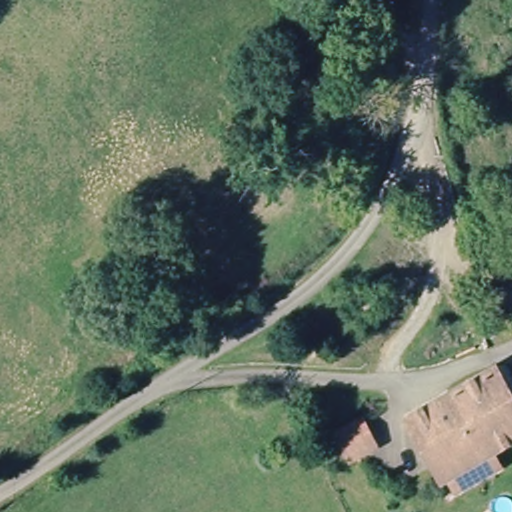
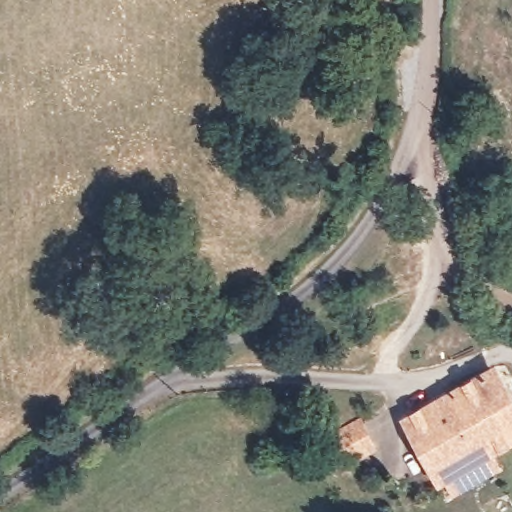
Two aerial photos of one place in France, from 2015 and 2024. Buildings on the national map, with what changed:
unchanged [(439,482),(409,424),(502,374),(512,394),(512,442),(439,482)]
unchanged [(380,450),(346,467),(328,437),(362,417),(380,450)]

